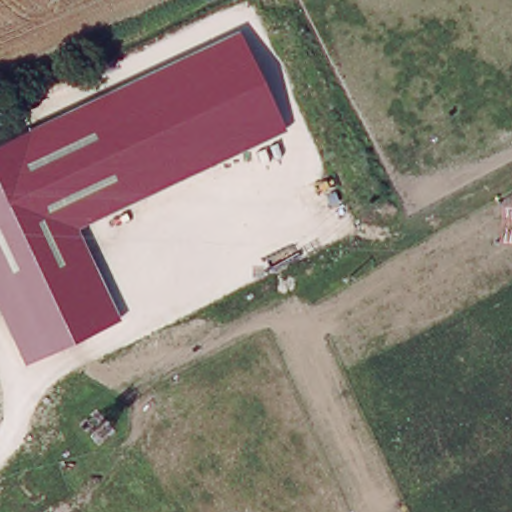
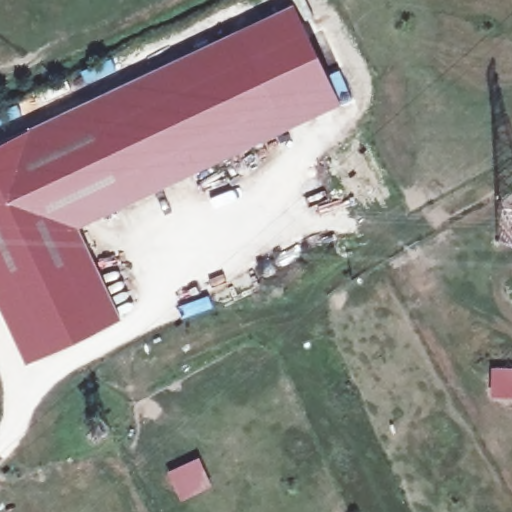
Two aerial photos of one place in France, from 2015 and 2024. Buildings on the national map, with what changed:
new [(238,31),(293,7),(340,105),(285,131),(238,31)]
unchanged [(0,315),(0,143),(238,31),(285,131),(78,228),(120,318),(23,363),(0,315)]

